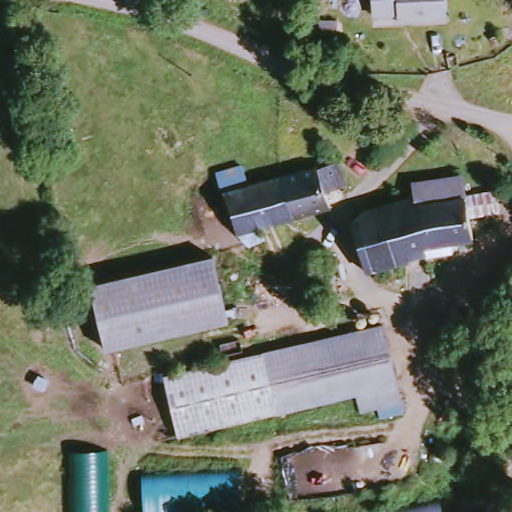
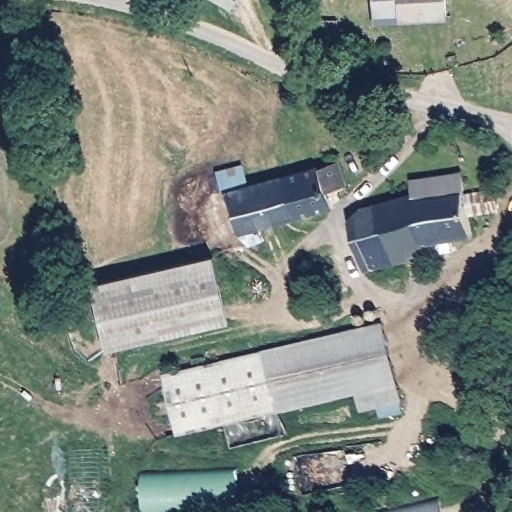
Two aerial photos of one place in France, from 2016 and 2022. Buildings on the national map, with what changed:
unchanged [(447,19),(408,20),(409,13),(375,13),(376,0),(447,0),(447,19)]
unchanged [(321,169),(321,171),(341,166),(348,191),(328,196),(331,208),(332,211),(325,214),(243,235),(233,193),(321,169)]
unchanged [(469,192),(473,192),(474,196),(500,190),(505,208),(478,213),(484,236),(433,248),(437,270),(418,275),(415,264),(373,274),(360,227),(370,210),(425,197),(421,185),(460,175),(466,174),(469,192)]
unchanged [(216,257),(220,256),(228,288),(236,319),(113,353),(96,291),(96,290),(216,257)]
unchanged [(181,435),(168,375),(287,348),(385,325),(408,407),(389,412),(371,417),(360,395),(316,406),(181,435)]
unchanged [(512,370),(510,370),(512,359),(512,370)]
unchanged [(245,512),(147,512),(145,472),(243,467),(245,512)]
unchanged [(443,496),(444,499),(446,512),(359,512),(442,497),(443,496)]

